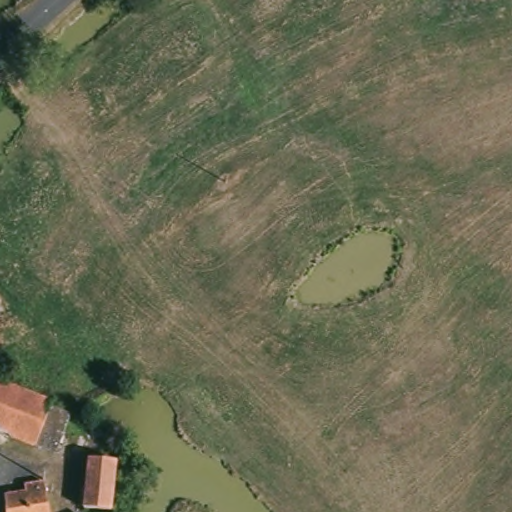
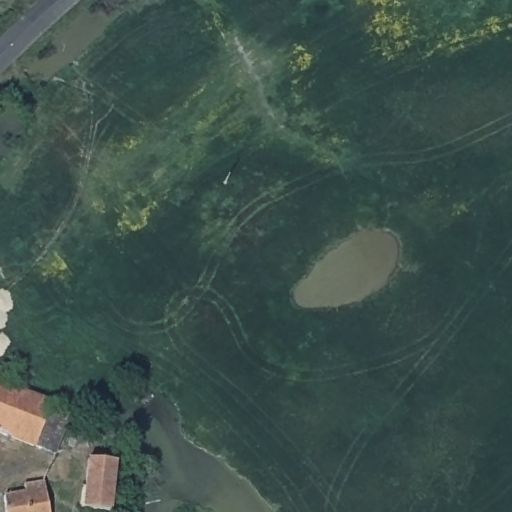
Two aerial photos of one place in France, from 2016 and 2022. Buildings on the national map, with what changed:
unchanged [(59,455),(0,438),(0,382),(57,398),(73,403),(71,410),(59,455)]
unchanged [(111,503),(110,512),(81,512),(90,462),(119,467),(116,478),(130,481),(125,506),(111,503)]
unchanged [(21,487),(43,484),(50,512),(3,512),(0,499),(22,496),(21,487)]

